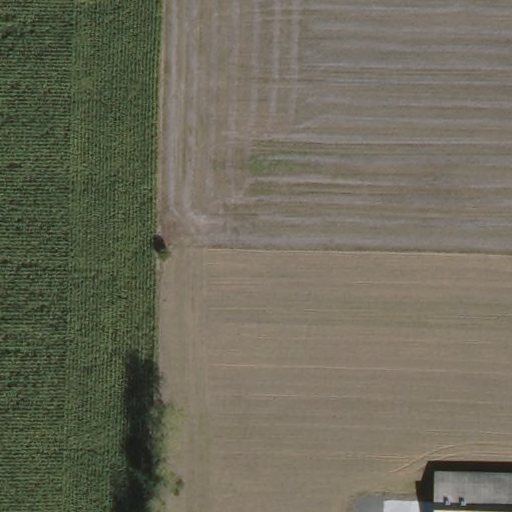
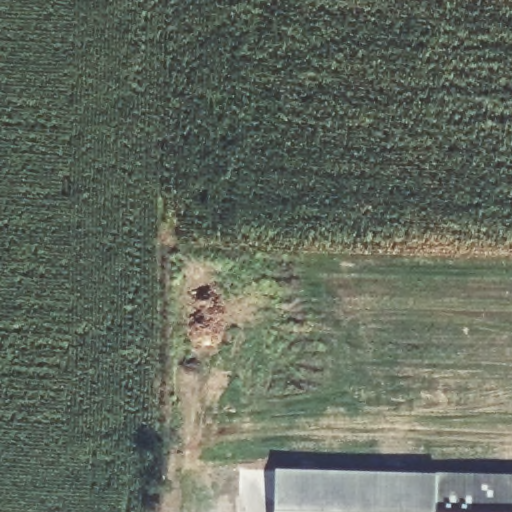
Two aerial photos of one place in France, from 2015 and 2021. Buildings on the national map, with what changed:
new [(444,512),(275,512),(276,470),(445,474),(444,512)]
unchanged [(512,512),(444,512),(445,474),(512,476),(512,512)]

